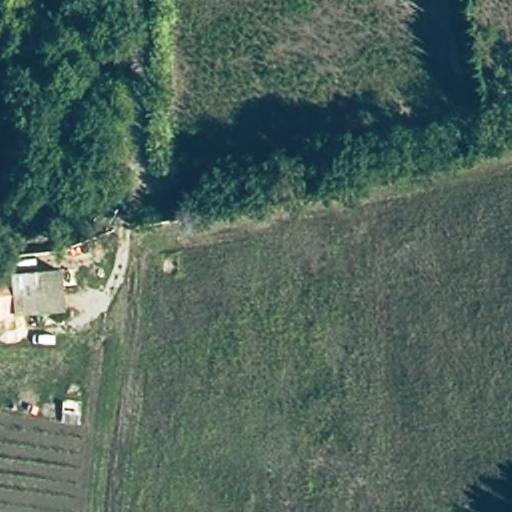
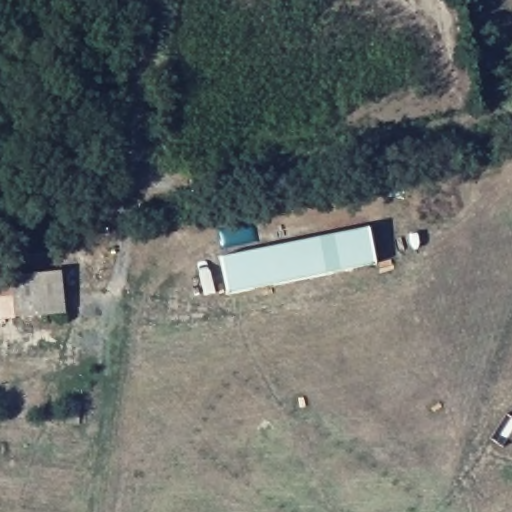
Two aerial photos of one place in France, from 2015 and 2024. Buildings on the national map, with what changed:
new [(227,294),(220,257),(367,227),(375,264),(227,294)]
unchanged [(65,310),(0,315),(0,278),(60,272),(65,310)]

